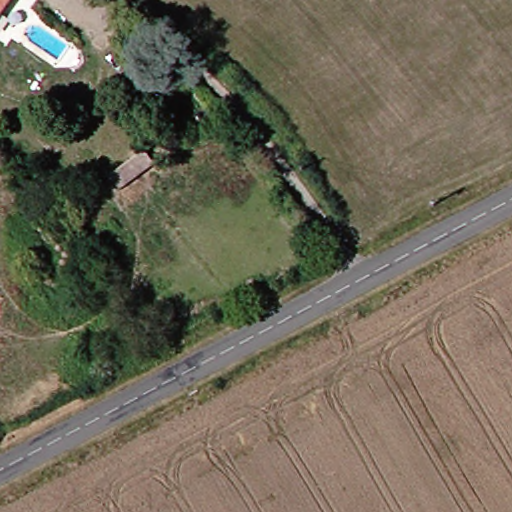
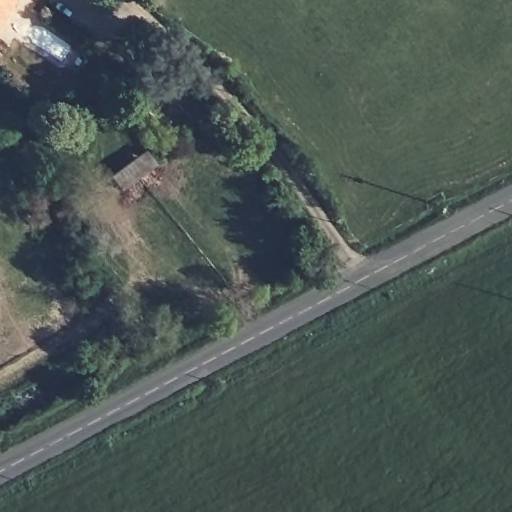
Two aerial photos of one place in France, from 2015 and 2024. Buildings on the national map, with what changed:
unchanged [(8,0),(0,12),(0,0),(8,0)]

